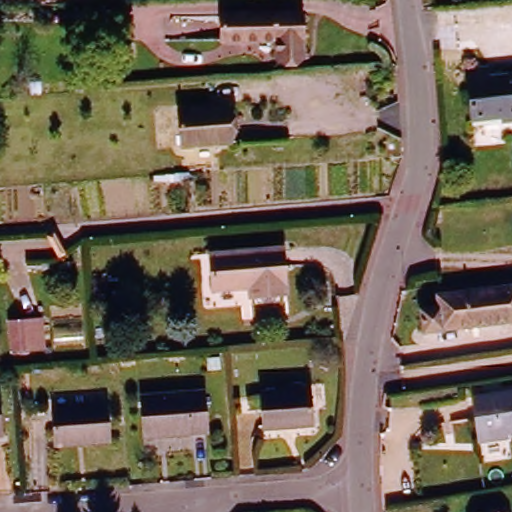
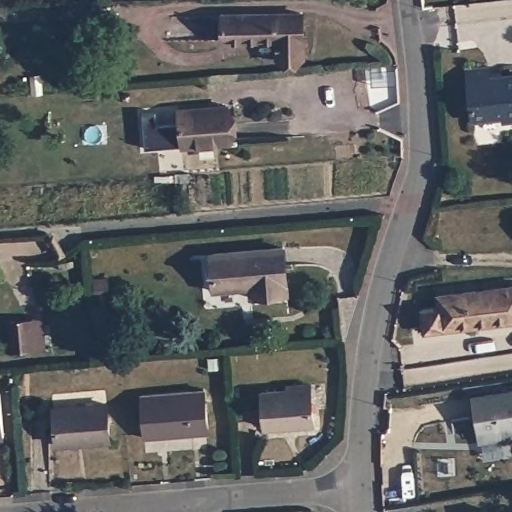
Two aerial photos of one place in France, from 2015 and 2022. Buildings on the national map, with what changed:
unchanged [(278,56),(276,37),(223,39),(221,14),(301,11),(303,54),(278,56)]
unchanged [(500,118),(500,113),(469,116),(465,70),(464,65),(486,62),(486,67),(487,73),(512,70),(512,117),(500,118)]
unchanged [(228,138),(181,142),(179,106),(226,103),(228,138)]
unchanged [(247,283),(212,286),(209,252),(283,246),(286,291),(248,294),(247,283)]
unchanged [(431,305),(430,295),(498,287),(512,285),(512,318),(502,319),(475,323),(415,329),(415,306),(431,305)]
unchanged [(6,319),(23,318),(35,317),(36,344),(25,345),(8,347),(6,319)]
unchanged [(262,426),(258,390),(281,388),(280,384),(309,382),(312,421),(262,426)]
unchanged [(202,388),(206,430),(144,436),(140,394),(202,388)]
unchanged [(496,432),(497,436),(473,440),(467,397),(512,390),(512,430),(496,432)]
unchanged [(52,443),(48,405),(100,400),(105,438),(52,443)]
unchanged [(0,436),(0,421),(1,435),(0,436)]

